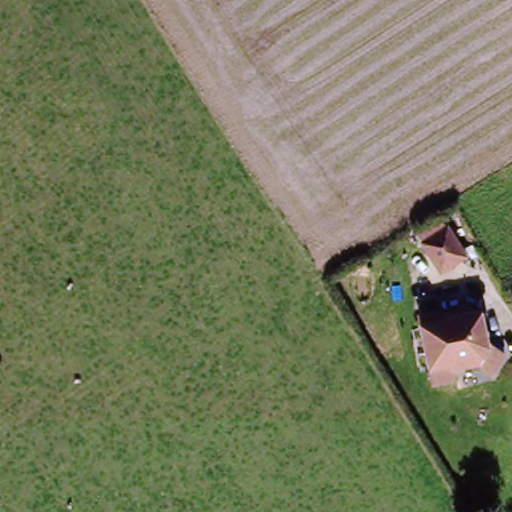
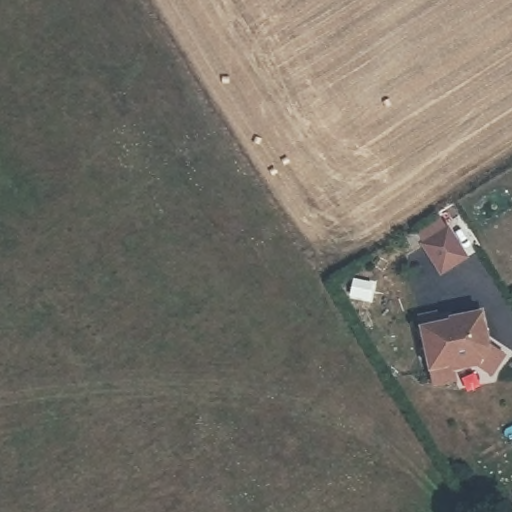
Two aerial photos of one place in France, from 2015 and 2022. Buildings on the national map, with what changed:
unchanged [(412,234),(443,216),(467,260),(443,275),(412,234)]
unchanged [(482,313),(488,348),(504,358),(495,379),(480,376),(429,384),(424,328),(482,313)]

